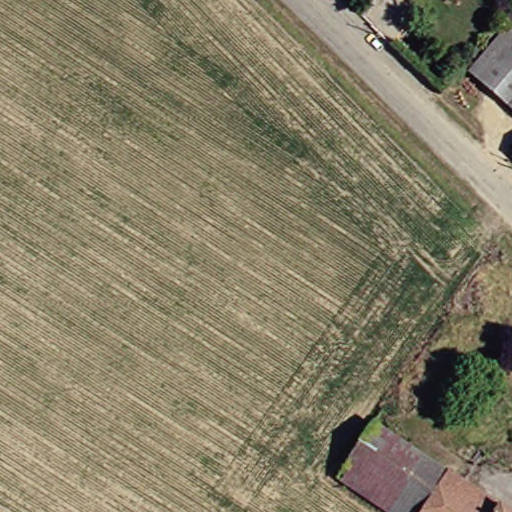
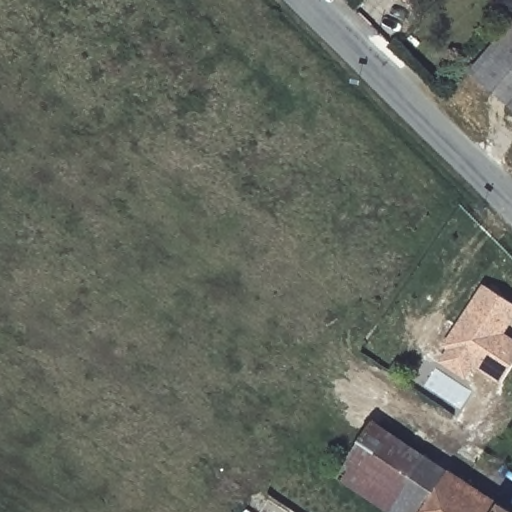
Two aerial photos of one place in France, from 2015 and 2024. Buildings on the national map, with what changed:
unchanged [(512,114),(464,71),(512,17),(512,114)]
new [(485,289),(512,306),(512,322),(501,338),(507,342),(512,345),(512,368),(500,385),(472,366),(463,378),(440,363),(449,350),(445,348),(485,289)]
unchanged [(371,512),(327,483),(364,428),(438,477),(415,512),(371,512)]
unchanged [(492,512),(415,512),(438,477),(492,512)]

